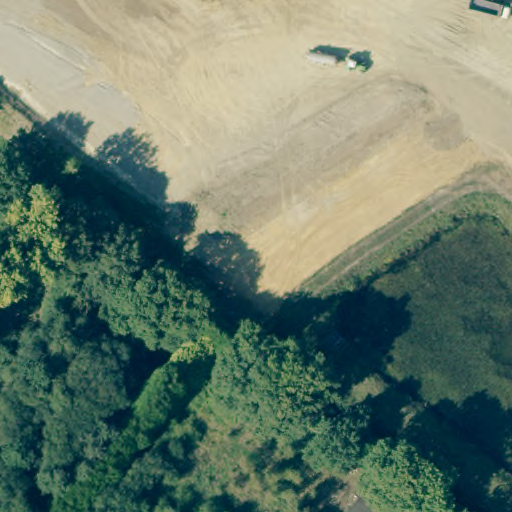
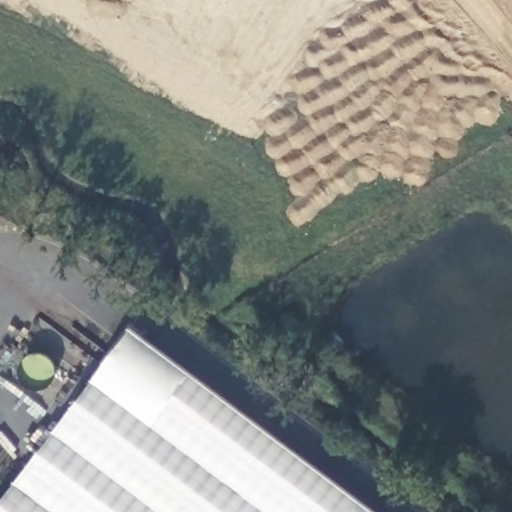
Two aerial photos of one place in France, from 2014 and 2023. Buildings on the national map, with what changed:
new [(376,512),(0,512),(0,503),(130,329),(376,512)]
demolished [(359,489),(386,512),(340,512),(349,500),(359,489)]

